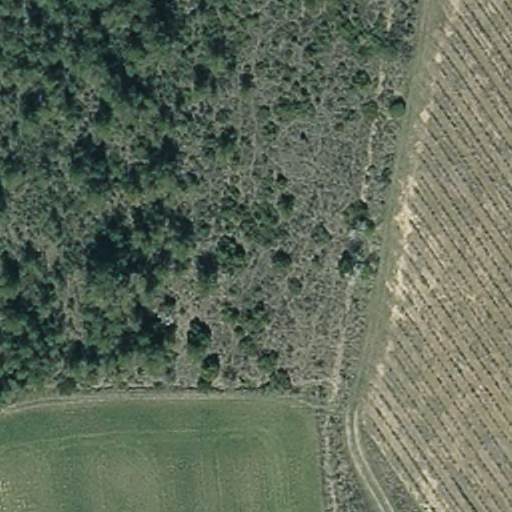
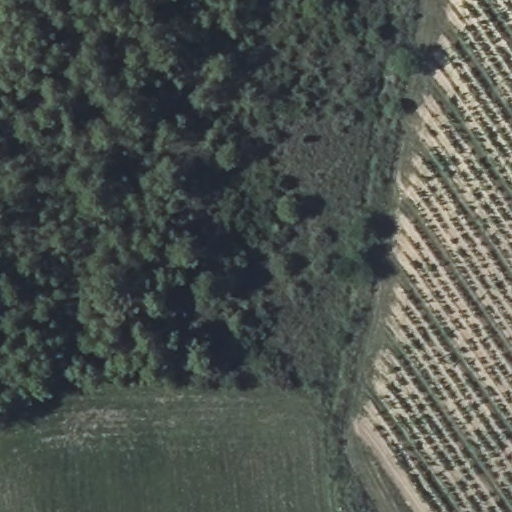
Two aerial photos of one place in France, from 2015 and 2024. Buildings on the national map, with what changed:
[]

